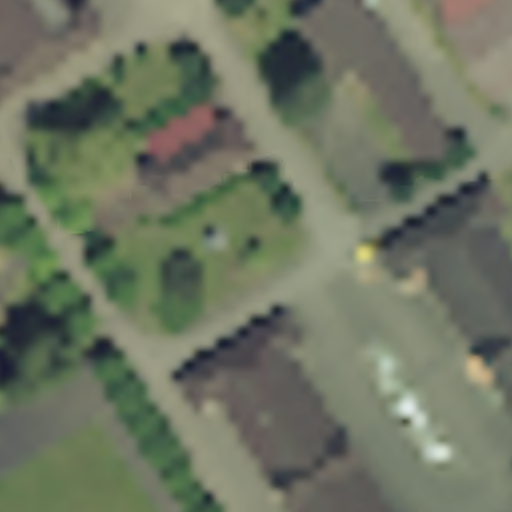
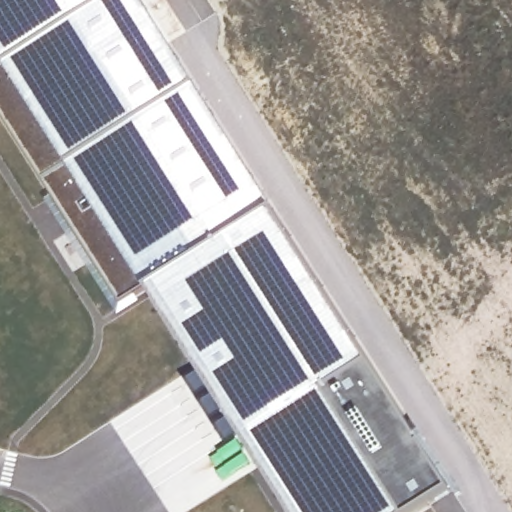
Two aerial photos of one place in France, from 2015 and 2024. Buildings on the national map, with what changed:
demolished [(112,27),(0,100),(0,0),(94,0),(112,27)]
new [(454,461),(380,512),(297,512),(0,52),(0,0),(155,0),(454,461)]
demolished [(318,0),(366,0),(390,42),(458,145),(437,158),(421,172),(354,67),(331,84),(309,47),(292,17),(318,0)]
demolished [(512,85),(487,101),(424,0),(512,0),(512,85)]
demolished [(130,150),(213,95),(253,152),(164,209),(130,150)]
demolished [(512,219),(512,224),(494,232),(512,259),(512,422),(422,274),(399,289),(377,252),(491,180),(512,219)]
demolished [(14,304),(0,314),(0,284),(14,304)]
demolished [(307,347),(290,356),(390,512),(282,512),(213,405),(194,418),(172,381),(287,310),(307,347)]

